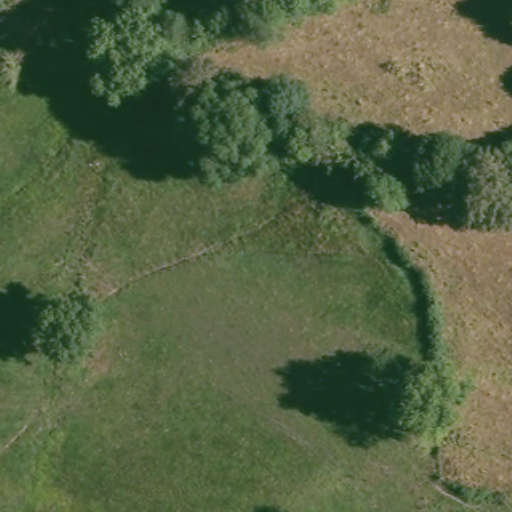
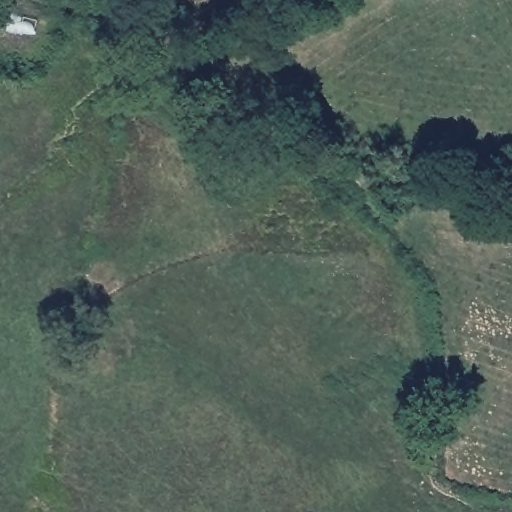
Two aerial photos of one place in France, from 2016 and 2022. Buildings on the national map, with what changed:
[]

